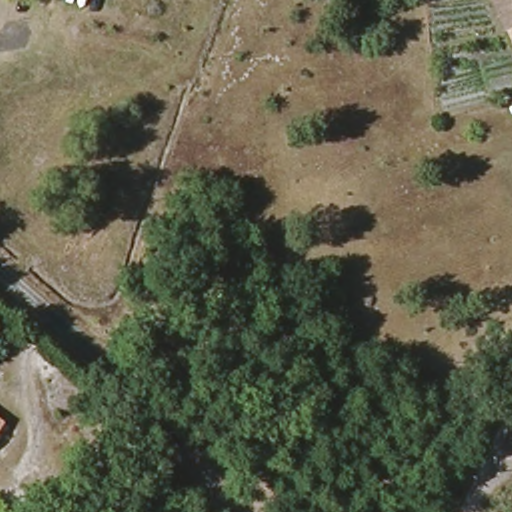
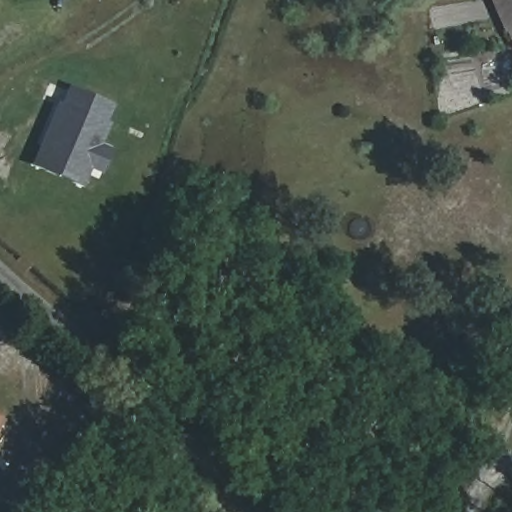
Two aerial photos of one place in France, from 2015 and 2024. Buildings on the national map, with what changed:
unchanged [(512,22),(510,22),(504,0),(512,0),(512,22)]
new [(108,103),(95,144),(105,148),(96,170),(86,166),(79,186),(28,165),(53,98),(60,101),(65,86),(108,103)]

